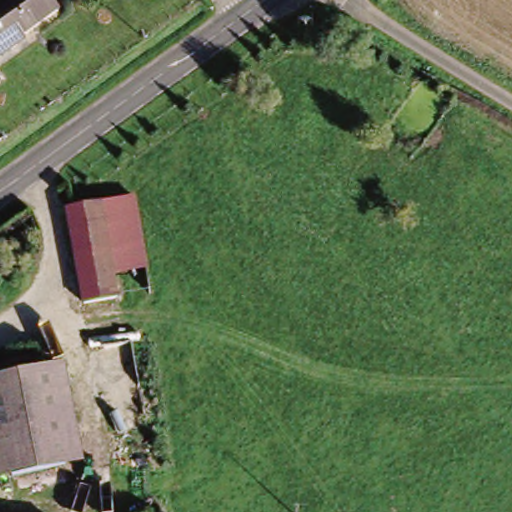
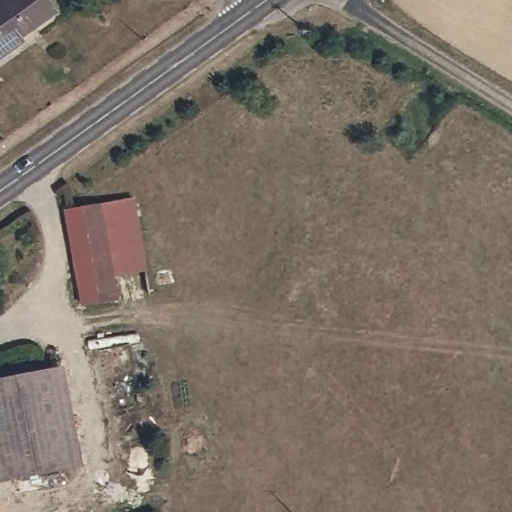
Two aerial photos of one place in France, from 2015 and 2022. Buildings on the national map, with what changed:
unchanged [(0,51),(0,2),(3,0),(55,0),(57,2),(28,22),(33,29),(0,51)]
unchanged [(133,195),(151,266),(122,273),(126,296),(86,303),(65,209),(109,200),(133,195)]
unchanged [(79,457),(0,478),(0,375),(60,361),(79,457)]

